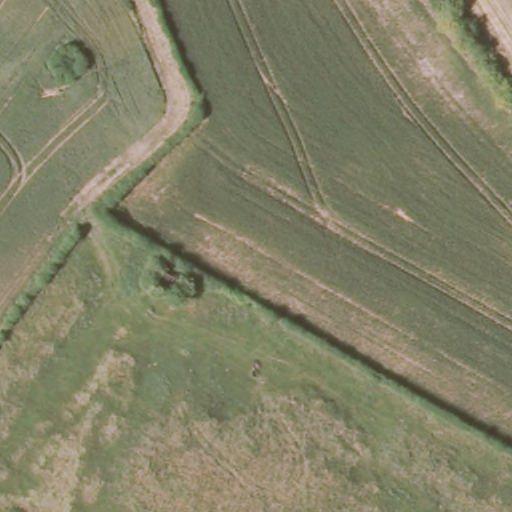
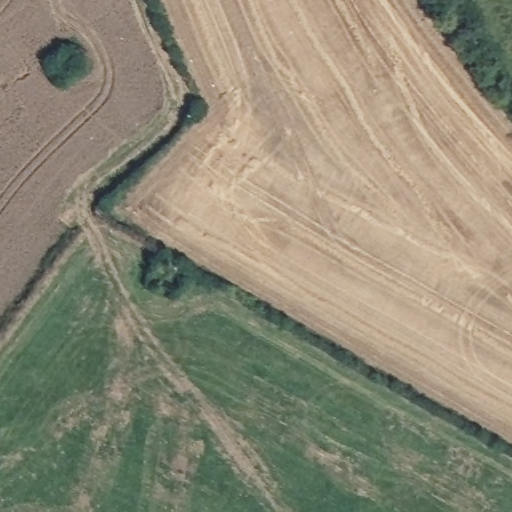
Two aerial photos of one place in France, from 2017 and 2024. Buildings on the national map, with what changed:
unchanged [(187,281),(178,299),(150,285),(160,266),(187,281)]

